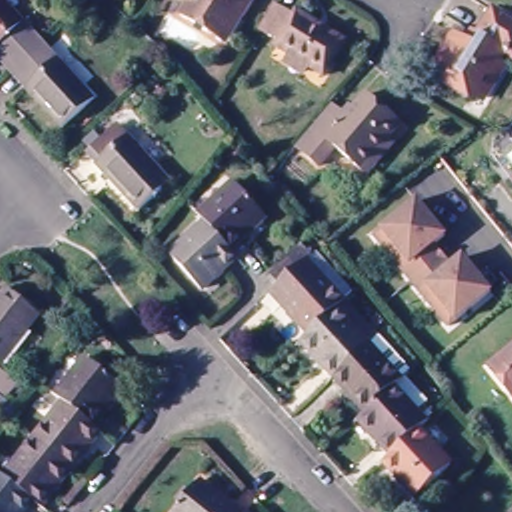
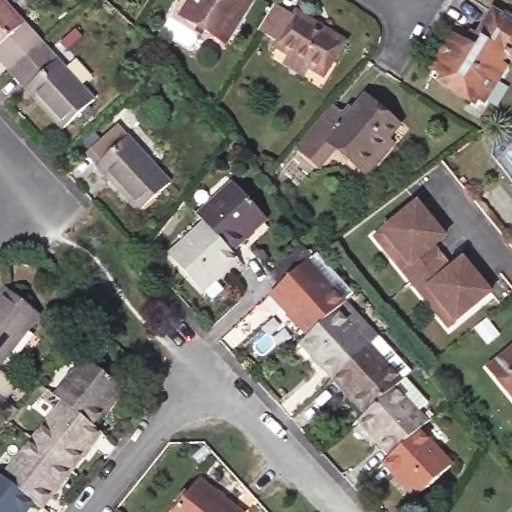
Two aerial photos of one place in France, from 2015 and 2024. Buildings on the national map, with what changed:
unchanged [(9,76),(0,66),(0,0),(4,0),(34,33),(32,36),(51,57),(54,55),(96,102),(63,132),(21,85),(19,87),(9,76)]
unchanged [(207,41),(209,38),(182,20),(192,5),(187,0),(255,0),(257,2),(230,44),(224,52),(207,41)]
unchanged [(285,71),(290,63),(273,53),(276,48),(256,36),(264,23),(273,9),(292,20),(295,16),(344,47),(323,82),(305,72),(300,80),(285,71)]
unchanged [(512,18),(512,65),(487,106),(477,101),(472,107),(442,90),(445,84),(436,79),(460,42),(470,47),(475,39),(482,43),(496,19),(507,26),(512,18)]
unchanged [(368,181),(360,175),(336,153),(320,169),(297,147),(321,120),(333,107),(349,121),(370,99),(403,129),(391,143),(398,149),(368,181)]
unchanged [(129,138),(131,136),(168,178),(136,208),(98,166),(88,154),(92,151),(118,127),(129,138)]
unchanged [(201,222),(239,189),(270,223),(232,257),(207,229),(201,222)]
unchanged [(407,266),(394,250),(379,233),(420,198),(449,232),(437,242),(455,264),(467,254),(495,288),(454,323),(439,305),(426,290),(407,266)]
unchanged [(232,257),(238,264),(203,294),(172,259),(207,229),(232,257)]
unchanged [(272,296),(279,290),(268,278),(297,252),(308,264),(317,255),(358,301),(352,306),(310,341),(272,296)]
unchanged [(1,300),(36,328),(0,372),(0,301),(1,300)]
unchanged [(310,341),(352,306),(382,339),(378,343),(331,384),(301,349),(310,341)]
unchanged [(378,343),(409,380),(402,386),(362,421),(331,384),(378,343)]
unchanged [(512,349),(512,391),(491,366),(512,349)]
unchanged [(67,402),(58,395),(92,358),(129,388),(98,426),(67,402)]
unchanged [(10,426),(0,418),(0,373),(18,389),(6,404),(19,414),(10,426)]
unchanged [(425,412),(411,424),(421,436),(414,442),(386,466),(354,428),(362,421),(402,386),(425,412)]
unchanged [(36,441),(67,402),(98,426),(104,432),(74,471),(36,441)]
unchanged [(74,471),(44,507),(36,501),(7,478),(36,441),(74,471)]
unchanged [(414,442),(445,479),(410,508),(379,473),(386,466),(414,442)]
unchanged [(27,512),(0,512),(0,473),(7,478),(36,501),(27,512)]
unchanged [(175,512),(202,481),(239,512),(175,512)]

